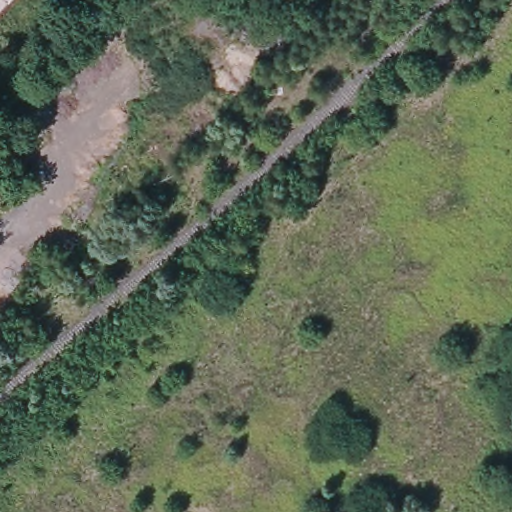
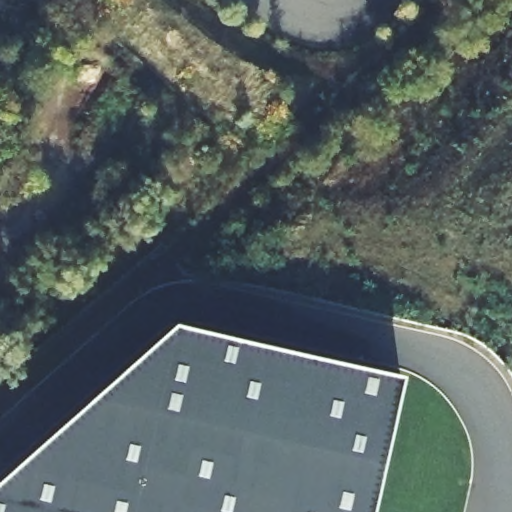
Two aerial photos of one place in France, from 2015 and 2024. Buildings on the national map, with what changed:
new [(0,512),(0,482),(172,327),(404,379),(374,512),(0,512)]

